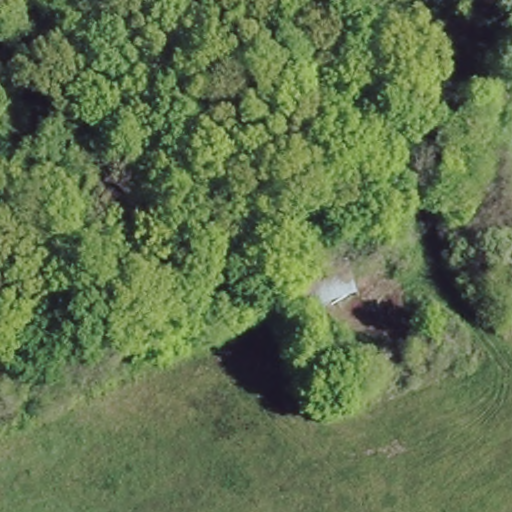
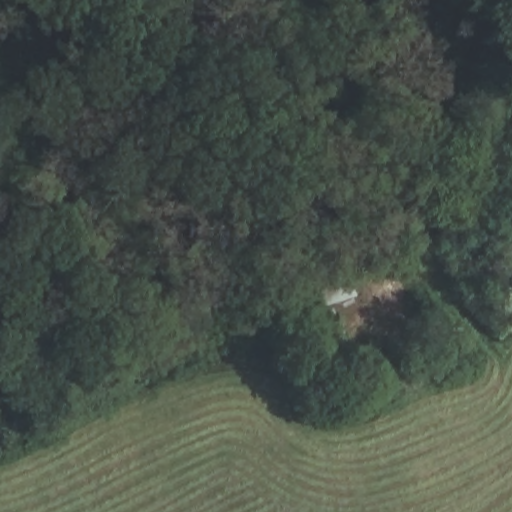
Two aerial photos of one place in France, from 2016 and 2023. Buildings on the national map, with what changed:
unchanged [(438,116),(435,140),(415,138),(421,114),(438,116)]
unchanged [(296,273),(345,257),(355,296),(302,311),(296,273)]

